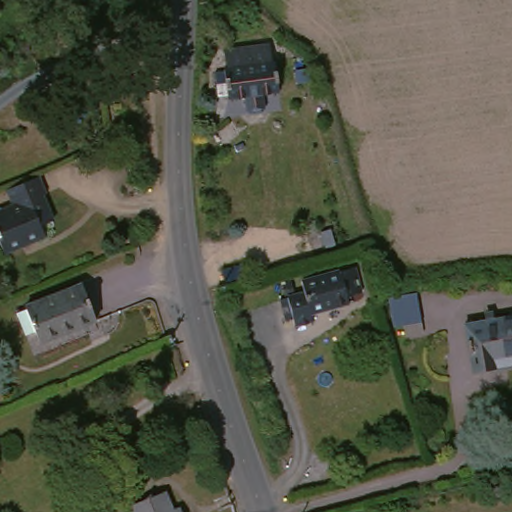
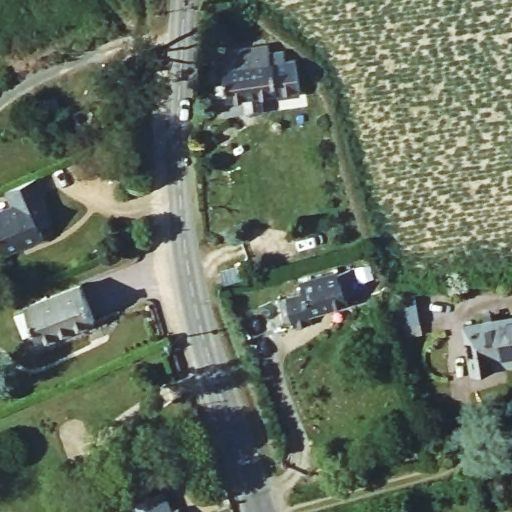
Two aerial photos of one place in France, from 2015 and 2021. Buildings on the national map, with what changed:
unchanged [(283,89),(234,100),(233,95),(223,98),(216,72),(227,70),(223,52),(266,42),(271,60),(276,59),(283,89)]
unchanged [(48,238),(6,255),(0,242),(0,212),(13,207),(3,185),(40,169),(49,191),(44,193),(54,217),(41,222),(48,238)]
unchanged [(256,279),(231,285),(226,269),(253,265),(256,279)]
unchanged [(361,268),(366,293),(350,296),(352,304),(313,312),(314,321),(296,325),(294,317),(286,319),(281,297),(308,291),(305,280),(361,268)]
unchanged [(98,317),(45,340),(28,303),(81,280),(98,317)]
unchanged [(422,328),(403,331),(402,320),(391,322),(386,291),(415,286),(422,328)]
unchanged [(462,326),(512,318),(512,362),(468,369),(462,326)]
unchanged [(134,512),(129,497),(136,495),(134,490),(147,486),(148,491),(167,486),(174,509),(182,506),(184,512),(134,512)]

